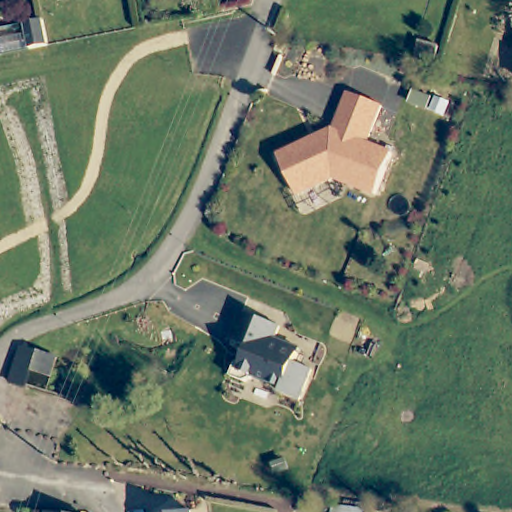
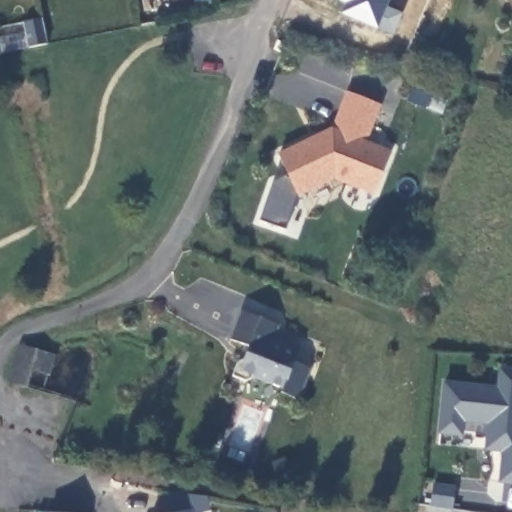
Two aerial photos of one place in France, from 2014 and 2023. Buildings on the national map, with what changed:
unchanged [(415,54),(420,40),(440,46),(435,60),(415,54)]
unchanged [(390,154),(375,195),(333,179),(297,196),(279,157),(307,144),(312,145),(318,144),(321,136),(333,131),(347,94),(380,107),(365,145),(390,154)]
unchanged [(292,355),(288,364),(305,370),(292,401),(275,395),(276,390),(249,379),(239,382),(226,378),(232,364),(239,361),(243,348),(225,341),(235,312),(273,327),(266,345),(292,355)]
unchanged [(21,343),(54,354),(49,371),(33,366),(27,384),(10,378),(21,343)]
new [(444,382),(497,387),(499,370),(512,371),(512,486),(497,485),(501,453),(484,451),(487,425),(463,422),(463,438),(437,435),(444,382)]

